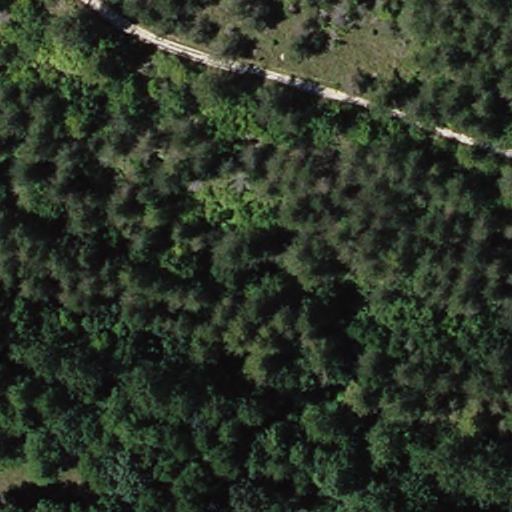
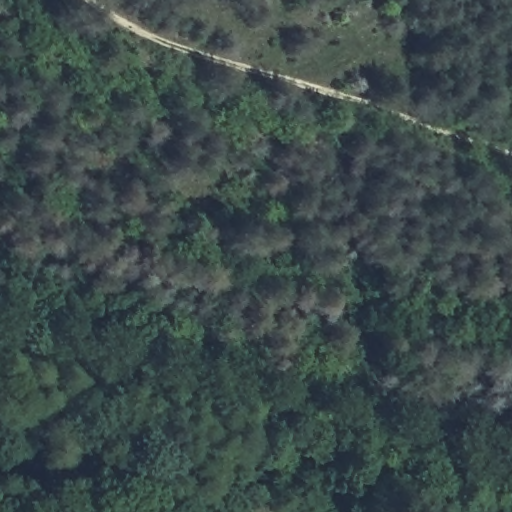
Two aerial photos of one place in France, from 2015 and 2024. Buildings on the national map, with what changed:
[]

